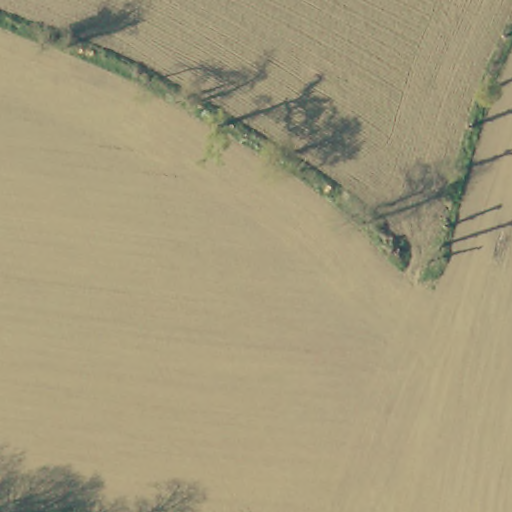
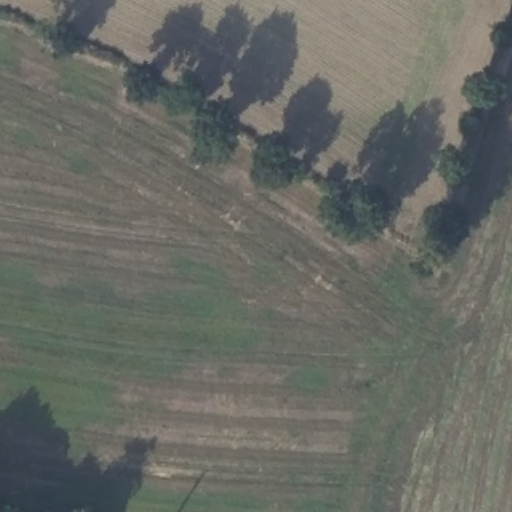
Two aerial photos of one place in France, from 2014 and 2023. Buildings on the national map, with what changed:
[]

